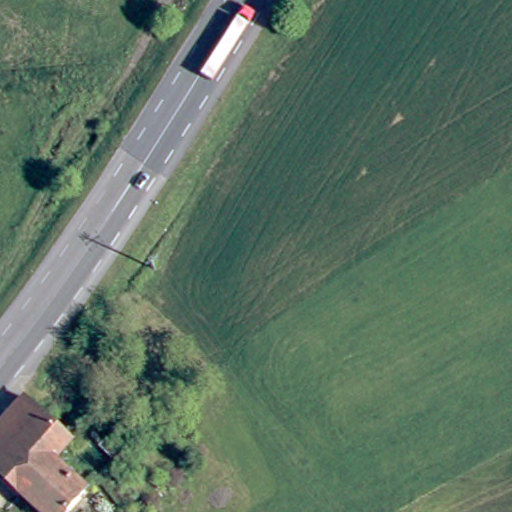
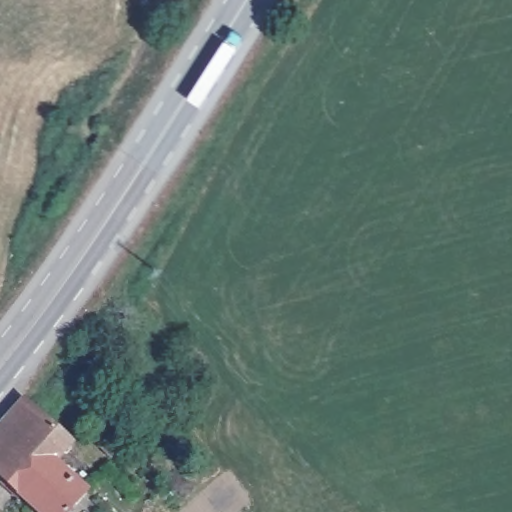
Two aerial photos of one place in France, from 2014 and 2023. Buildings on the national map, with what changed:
unchanged [(71,440),(58,458),(88,486),(64,512),(45,512),(0,472),(0,424),(24,396),(71,440)]

